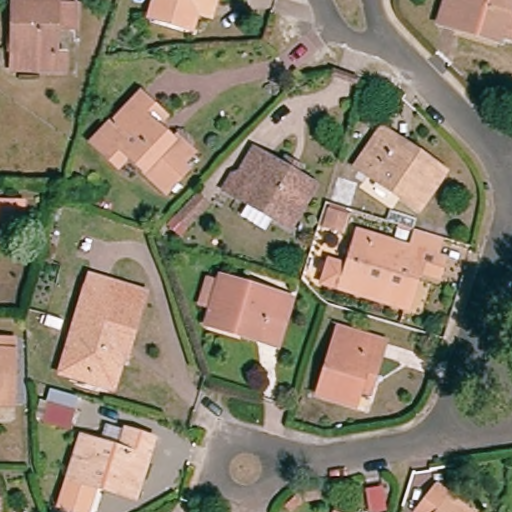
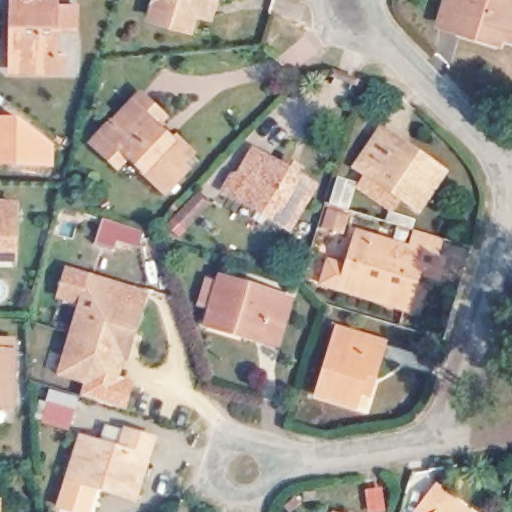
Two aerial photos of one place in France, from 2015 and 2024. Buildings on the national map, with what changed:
unchanged [(59,67),(31,67),(30,48),(15,47),(8,47),(8,11),(8,0),(52,0),(51,29),(51,48),(58,48),(59,67)]
unchanged [(81,30),(51,29),(52,0),(81,0),(81,30)]
unchanged [(205,15),(191,10),(187,26),(145,15),(149,0),(209,0),(205,15)]
unchanged [(448,31),(432,27),(439,0),(502,0),(497,16),(512,20),(512,33),(509,45),(490,40),(489,45),(448,31)]
unchanged [(156,105),(164,112),(159,118),(176,134),(195,152),(186,163),(191,167),(171,189),(132,154),(124,163),(109,149),(101,142),(119,120),(143,94),(156,105)]
new [(55,145),(53,168),(0,166),(0,116),(15,116),(55,145)]
unchanged [(360,171),(386,134),(405,147),(447,177),(444,182),(422,215),(360,171)]
unchanged [(228,194),(237,180),(242,182),(260,152),(288,170),(292,164),(303,170),(299,176),(319,188),(291,233),(271,221),(251,209),(228,194)]
unchanged [(200,194),(214,207),(190,231),(176,220),(200,194)]
unchanged [(24,226),(0,226),(0,201),(25,202),(24,226)]
unchanged [(409,315),(327,288),(333,268),(350,273),(360,240),(409,256),(416,233),(445,242),(439,262),(445,265),(439,283),(421,278),(415,298),(409,315)]
unchanged [(208,316),(220,283),(288,305),(272,349),(257,345),(204,326),(208,316)]
unchanged [(86,387),(63,380),(76,333),(73,332),(86,287),(141,303),(129,341),(121,364),(117,362),(110,388),(107,394),(86,387)]
unchanged [(357,400),(353,411),(318,401),(340,333),(377,345),(383,347),(378,365),(372,385),(367,402),(357,400)]
unchanged [(0,343),(18,343),(18,361),(0,360),(0,343)]
unchanged [(0,412),(0,360),(18,361),(16,412),(0,412)]
unchanged [(121,451),(128,433),(155,442),(135,501),(94,488),(86,512),(83,512),(61,505),(84,438),(121,451)]
unchanged [(432,493),(457,512),(417,512),(422,506),(432,493)]

